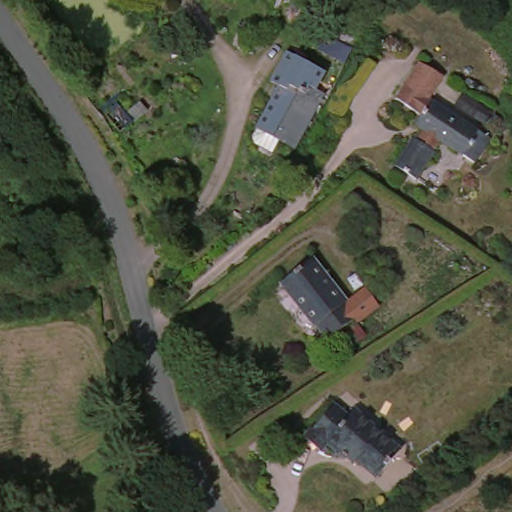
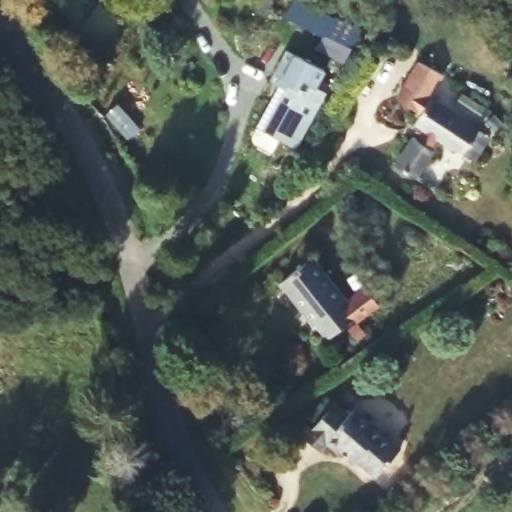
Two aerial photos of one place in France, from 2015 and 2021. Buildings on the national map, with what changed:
unchanged [(342,71),(315,58),(323,40),(336,47),(344,29),(359,37),(342,71)]
unchanged [(284,95),(268,86),(284,56),(321,75),(312,94),(316,95),(287,150),(272,142),(265,155),(247,146),(245,140),(250,130),(261,136),(284,95)]
unchanged [(386,172),(415,125),(389,107),(414,67),(442,84),(428,106),(461,132),(471,111),(508,125),(498,151),(489,146),(477,169),(442,152),(419,187),(386,172)]
unchanged [(311,260),(348,306),(345,308),(366,295),(378,310),(359,325),(354,320),(326,342),(315,327),(312,330),(278,285),(311,260)]
unchanged [(354,466),(351,470),(326,447),(317,458),(303,445),(335,410),(349,422),(353,417),(398,458),(375,485),(354,466)]

